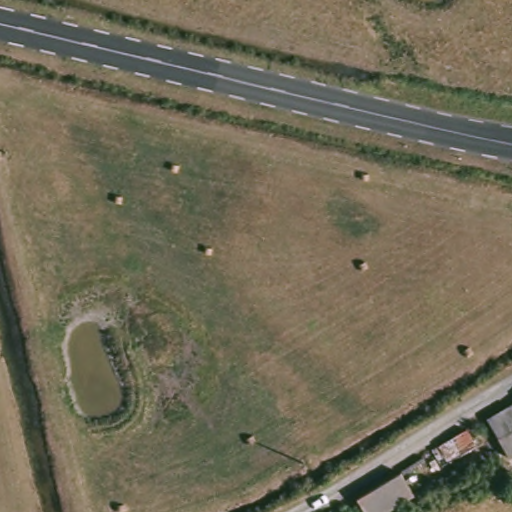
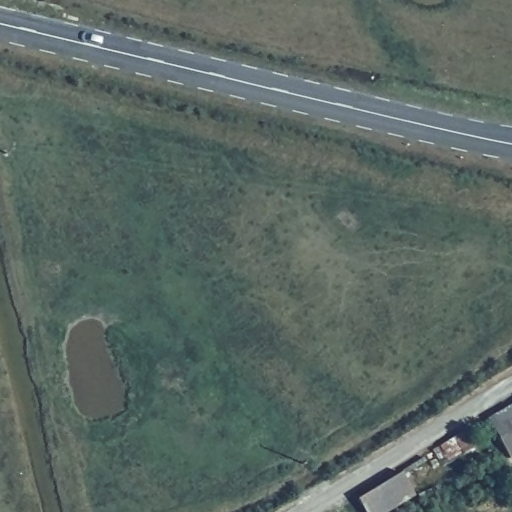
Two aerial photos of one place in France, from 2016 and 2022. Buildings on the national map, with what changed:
unchanged [(493,423),(512,412),(512,458),(511,457),(497,432),(493,423)]
unchanged [(440,466),(433,455),(429,447),(456,431),(460,440),(467,452),(440,466)]
unchanged [(408,499),(387,512),(357,512),(352,505),(348,498),(374,478),(390,468),(395,477),(405,493),(408,499)]

